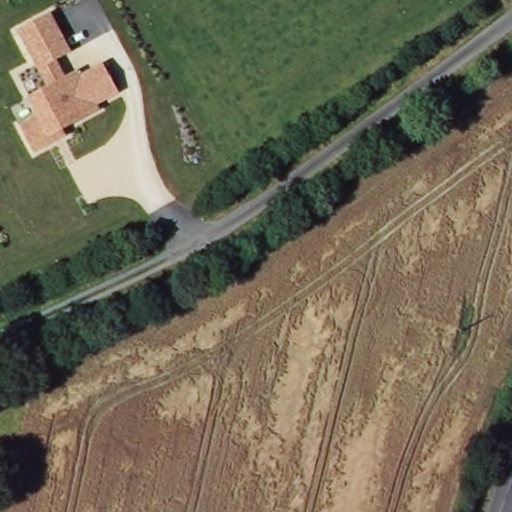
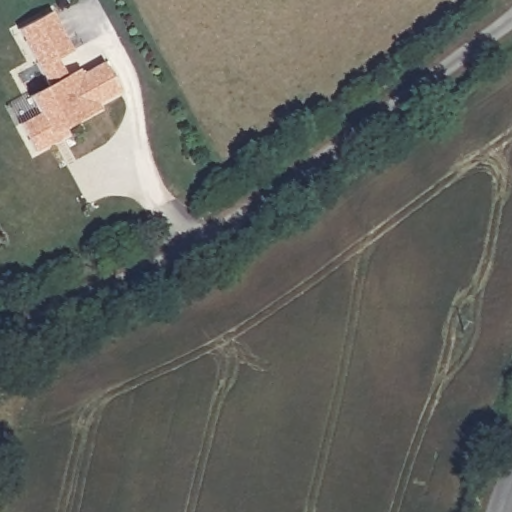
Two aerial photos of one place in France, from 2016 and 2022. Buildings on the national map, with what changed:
unchanged [(63,79),(48,86),(16,30),(52,10),(71,52),(59,58),(66,76),(63,79)]
unchanged [(20,124),(36,115),(28,98),(77,71),(80,76),(104,65),(119,96),(96,109),(99,113),(34,152),(20,124)]

